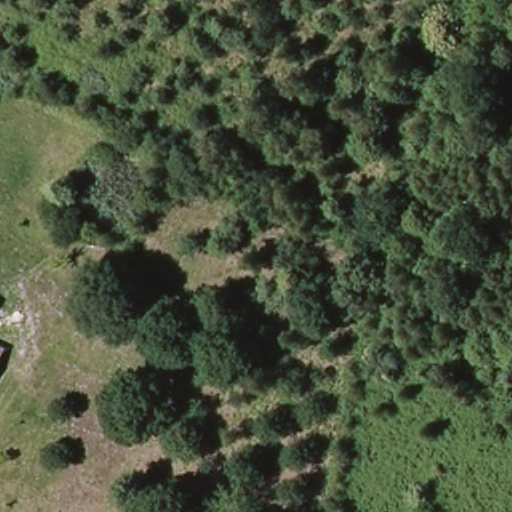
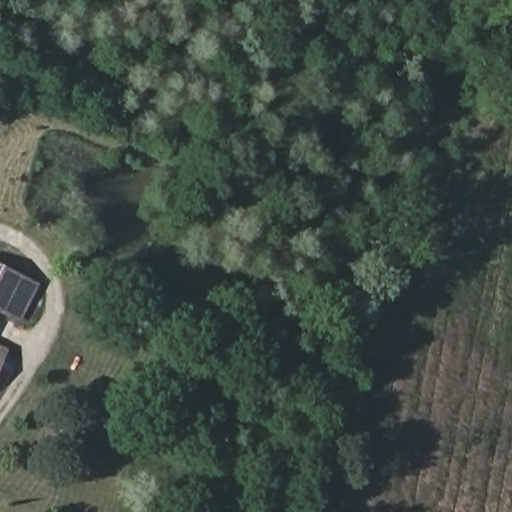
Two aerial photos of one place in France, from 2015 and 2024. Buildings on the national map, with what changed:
new [(19,321),(0,312),(0,264),(38,282),(19,321)]
unchanged [(0,367),(0,346),(9,351),(0,367)]

